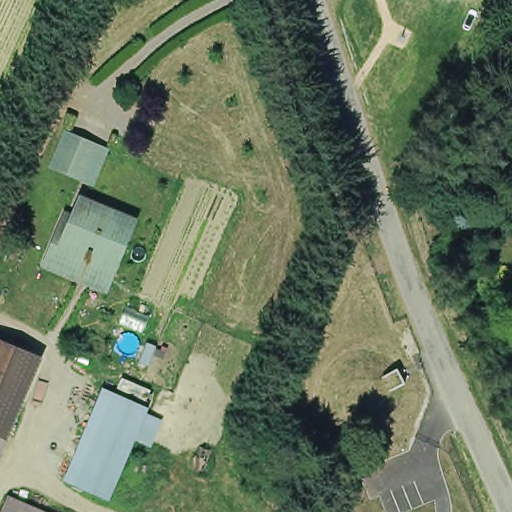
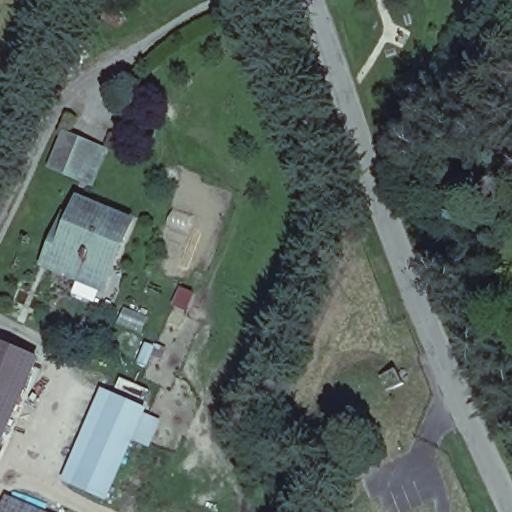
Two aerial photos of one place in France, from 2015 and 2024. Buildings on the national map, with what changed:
unchanged [(85,168),(58,156),(70,130),(97,142),(106,146),(95,172),(85,168)]
unchanged [(51,262),(66,228),(73,230),(85,202),(132,222),(113,267),(104,286),(78,275),(51,262)]
unchanged [(40,359),(22,403),(10,398),(0,422),(0,340),(30,354),(40,359)]
unchanged [(80,482),(119,391),(158,407),(154,415),(171,422),(163,444),(145,436),(118,499),(80,482)]
unchanged [(62,512),(2,512),(11,490),(62,512)]

